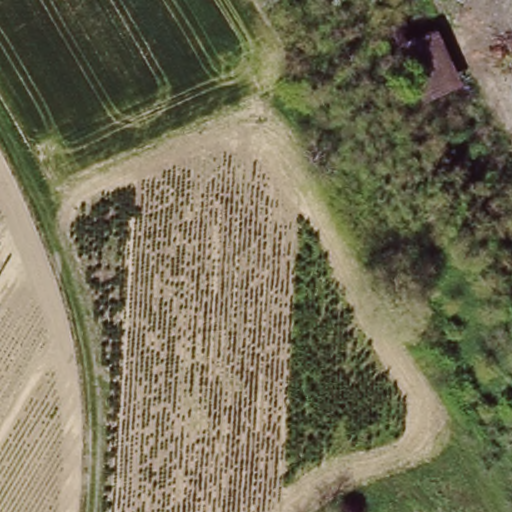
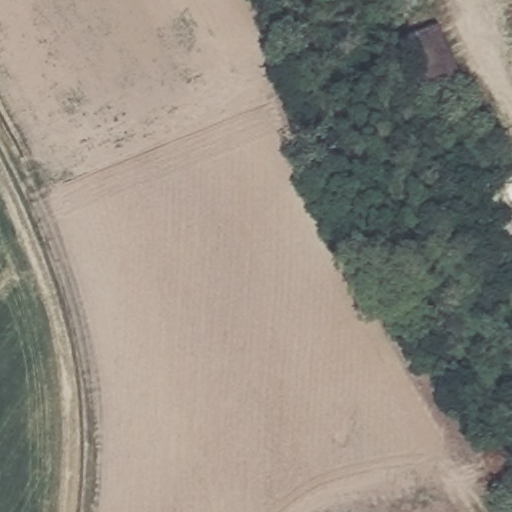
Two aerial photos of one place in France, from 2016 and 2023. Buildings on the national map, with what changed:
unchanged [(426,5),(462,81),(425,100),(390,24),(426,5)]

